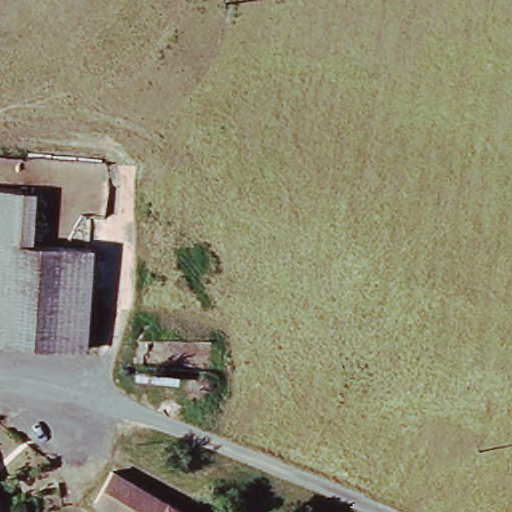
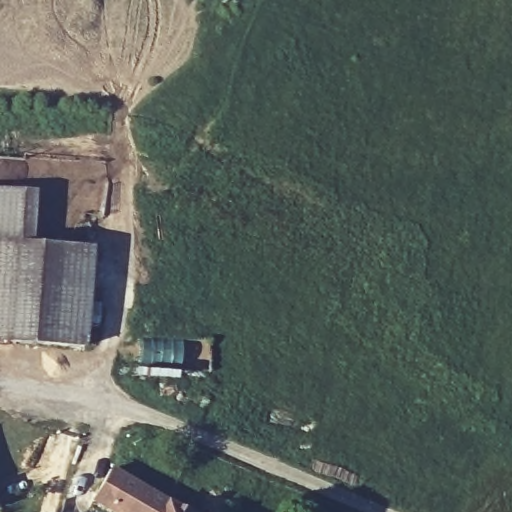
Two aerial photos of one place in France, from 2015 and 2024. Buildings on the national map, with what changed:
unchanged [(23,241),(14,341),(0,340),(0,191),(28,193),(23,241)]
unchanged [(95,247),(87,347),(14,341),(23,241),(95,247)]
unchanged [(120,470),(193,512),(121,512),(102,501),(120,470)]

